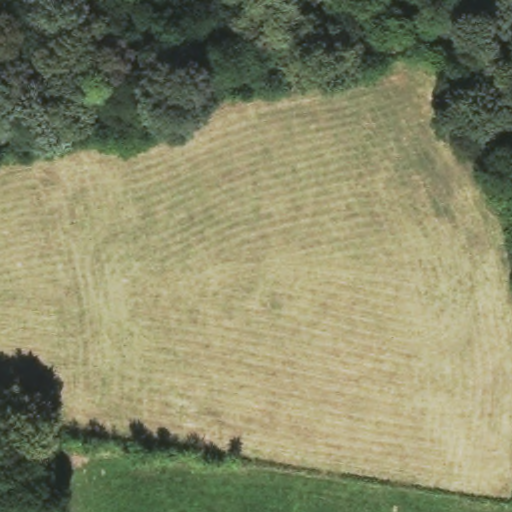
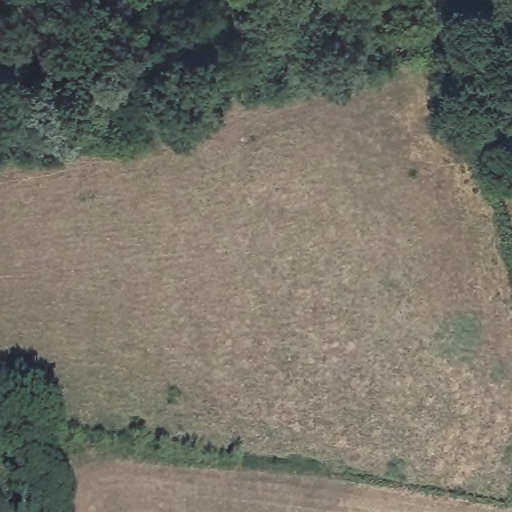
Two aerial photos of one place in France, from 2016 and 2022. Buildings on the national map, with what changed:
unchanged [(489,9),(454,24),(449,0),(487,0),(489,9)]

